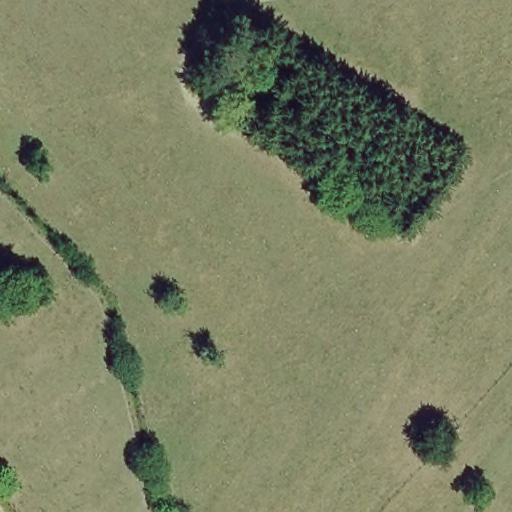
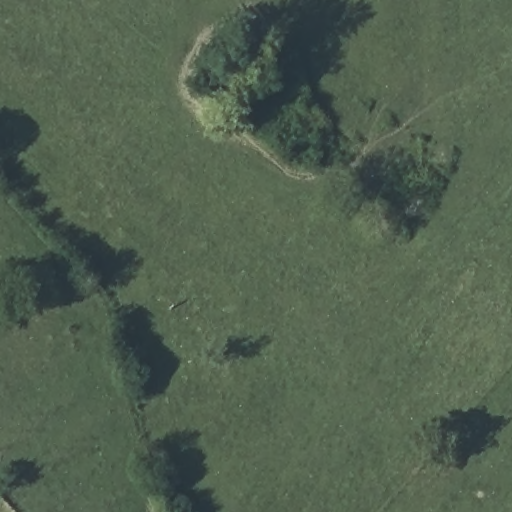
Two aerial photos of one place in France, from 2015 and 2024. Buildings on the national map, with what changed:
[]

